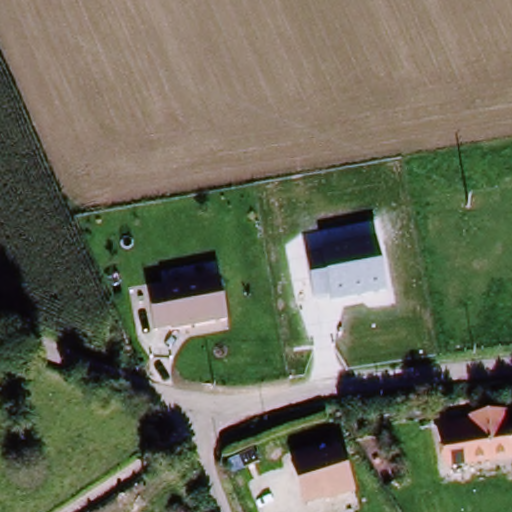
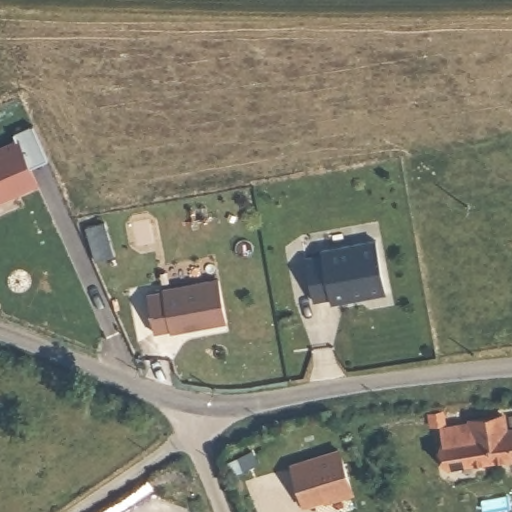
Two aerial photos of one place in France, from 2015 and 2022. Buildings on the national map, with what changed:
new [(23,158),(16,142),(12,134),(31,126),(47,162),(22,172),(17,161),(28,187),(0,200),(0,149),(16,142),(23,158)]
unchanged [(306,259),(376,245),(385,293),(332,303),(330,297),(314,299),(306,259)]
unchanged [(215,281),(222,327),(175,338),(165,331),(152,334),(143,297),(215,281)]
unchanged [(473,463),(450,466),(445,441),(455,438),(452,426),(472,425),(472,420),(498,417),(500,433),(512,432),(512,459),(473,463)]
unchanged [(340,451),(352,493),(301,508),(292,465),(340,451)]

